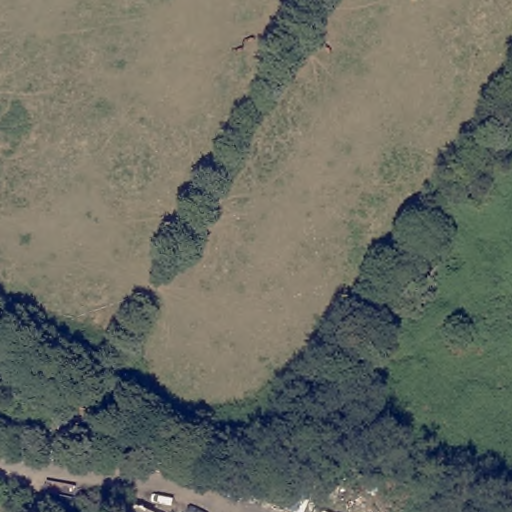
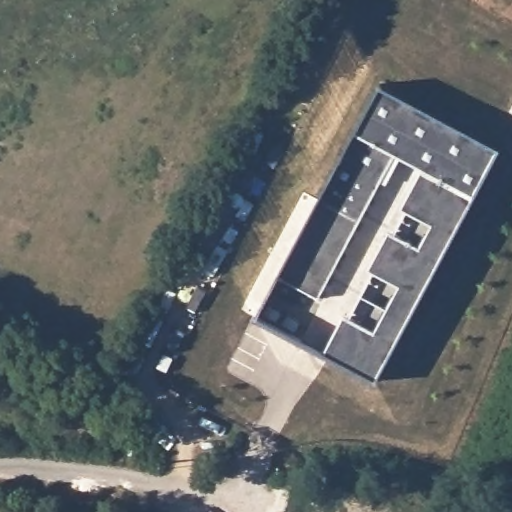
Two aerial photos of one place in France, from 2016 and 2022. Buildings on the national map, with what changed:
new [(376,85),(497,148),(374,379),(323,352),(343,313),(347,315),(370,271),(365,269),(387,229),(392,232),(403,210),(399,207),(419,168),(392,153),(318,300),(275,277),(376,85)]

